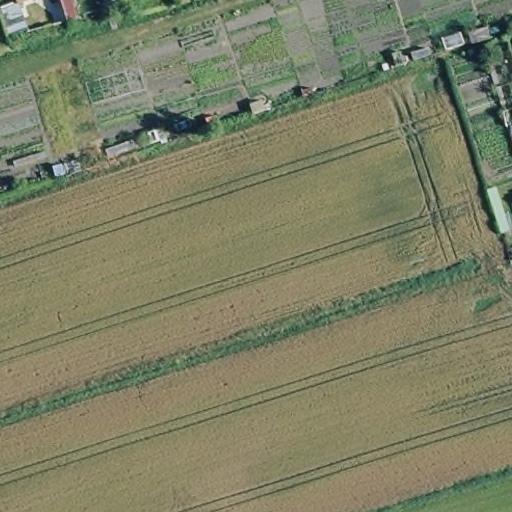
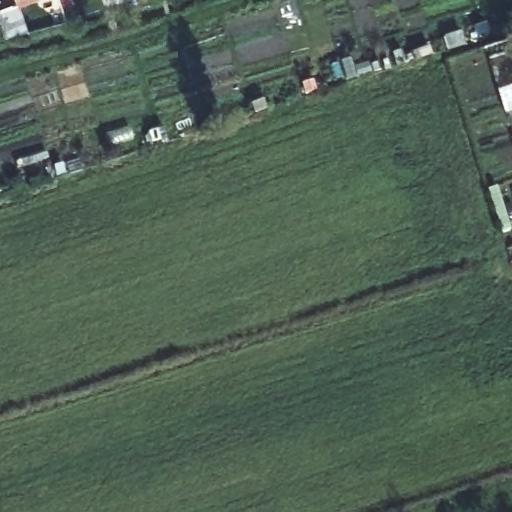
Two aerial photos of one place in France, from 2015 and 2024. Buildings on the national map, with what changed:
unchanged [(49,31),(40,1),(32,3),(31,0),(53,0),(61,29),(49,31)]
unchanged [(8,6),(17,33),(4,38),(0,25),(0,9),(8,6)]
unchanged [(512,109),(512,117),(510,110),(512,109)]

